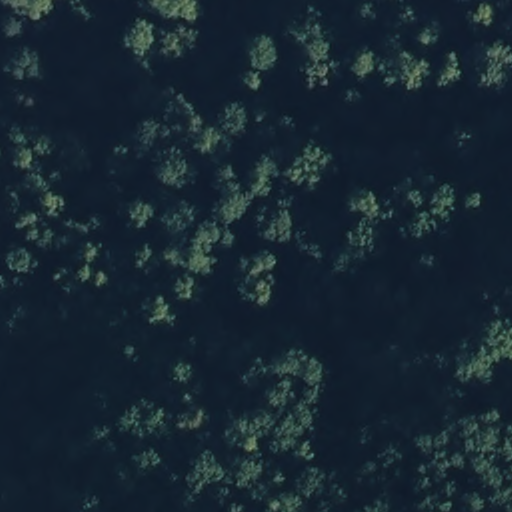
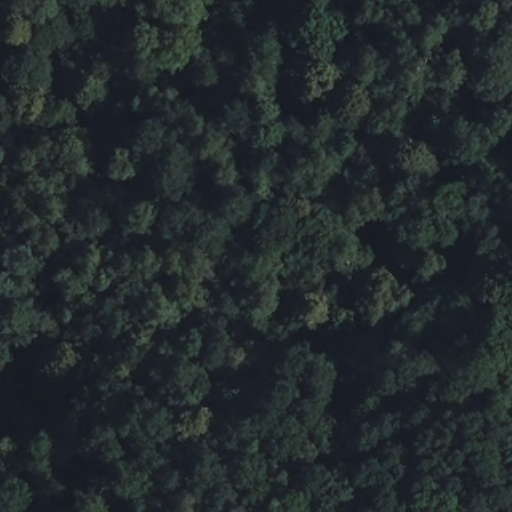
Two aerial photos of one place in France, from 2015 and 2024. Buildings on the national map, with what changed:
[]

